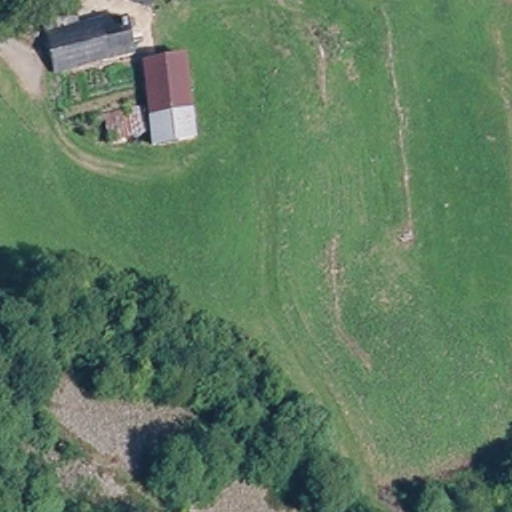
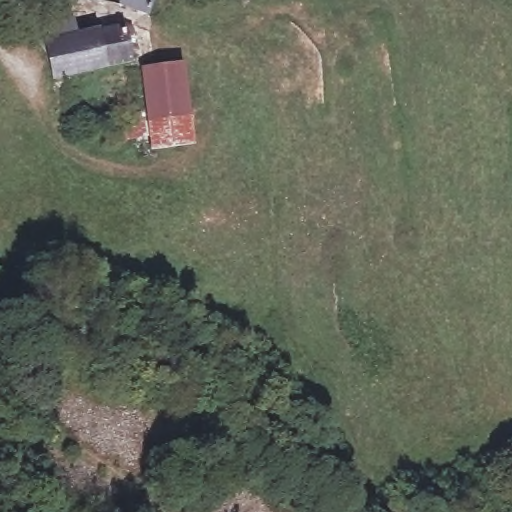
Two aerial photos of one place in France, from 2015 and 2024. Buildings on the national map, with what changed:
unchanged [(147,6),(123,0),(148,0),(147,6)]
unchanged [(73,37),(122,26),(130,24),(135,36),(124,39),(129,60),(50,80),(40,30),(69,24),(73,37)]
unchanged [(144,69),(182,68),(193,148),(153,150),(149,114),(144,69)]

